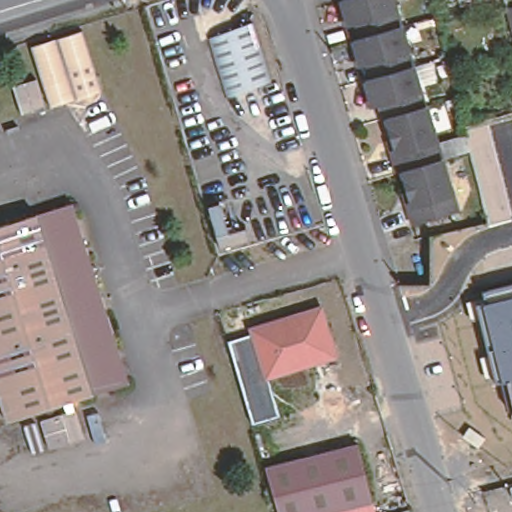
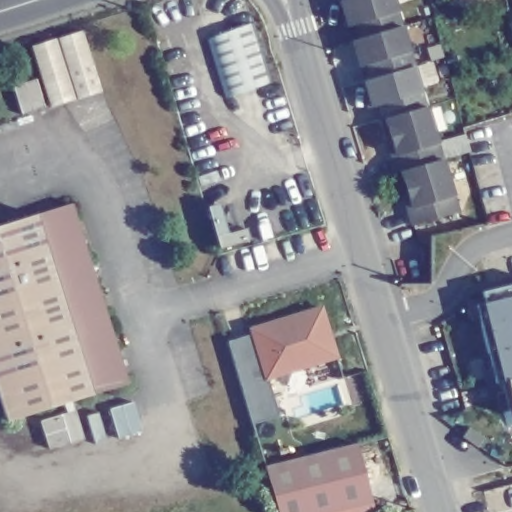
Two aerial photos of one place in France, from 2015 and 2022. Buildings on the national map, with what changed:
unchanged [(360,37),(355,23),(348,25),(340,0),(392,0),(399,25),(360,37)]
unchanged [(247,6),(272,83),(225,101),(202,17),(247,6)]
unchanged [(360,37),(399,25),(410,66),(370,79),(366,65),(360,67),(352,40),(360,37)]
unchanged [(81,37),(102,100),(50,115),(32,50),(81,37)]
unchanged [(421,107),(384,117),(381,119),(378,104),(371,105),(364,80),(370,79),(410,66),(421,107)]
unchanged [(421,107),(423,106),(439,159),(399,170),(393,171),(389,155),(394,154),(384,117),(421,107)]
unchanged [(452,212),(409,225),(404,207),(409,206),(399,170),(439,159),(452,212)]
unchanged [(74,211),(127,391),(92,402),(39,221),(74,211)]
unchanged [(92,402),(5,427),(0,412),(0,233),(39,221),(92,402)]
unchanged [(485,302),(482,295),(512,286),(512,398),(508,380),(502,381),(495,383),(475,305),(485,302)]
unchanged [(229,341),(250,335),(248,328),(323,305),(338,357),(268,380),(277,417),(254,425),(229,341)]
unchanged [(357,455),(369,507),(347,512),(281,512),(273,473),(357,455)]

